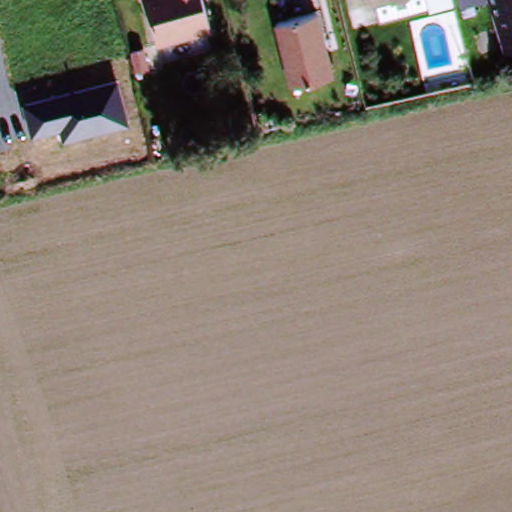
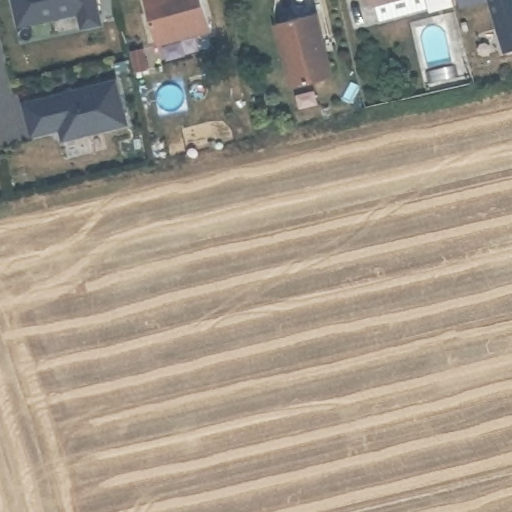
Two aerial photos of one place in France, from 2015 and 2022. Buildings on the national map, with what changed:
new [(77,32),(74,16),(24,26),(18,0),(99,0),(105,26),(77,32)]
unchanged [(163,43),(152,0),(206,0),(214,29),(163,43)]
unchanged [(369,0),(408,0),(372,9),(369,0)]
unchanged [(485,1),(459,6),(457,0),(512,0),(512,49),(500,53),(485,1)]
unchanged [(320,17),(335,79),(295,89),(279,28),(320,17)]
unchanged [(117,79),(130,126),(63,144),(59,133),(30,138),(22,101),(117,79)]

